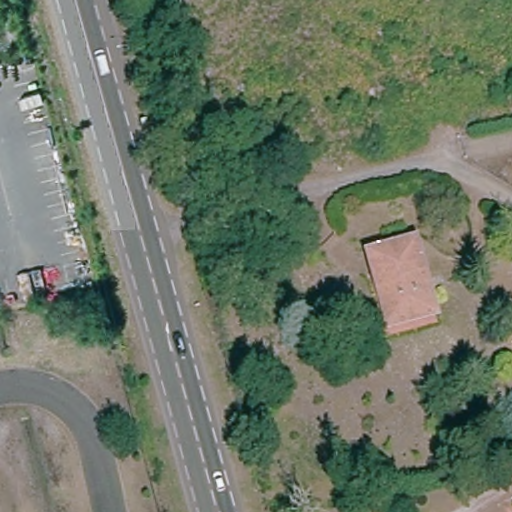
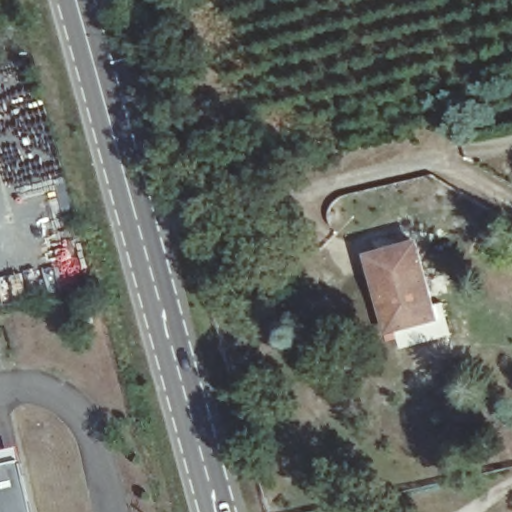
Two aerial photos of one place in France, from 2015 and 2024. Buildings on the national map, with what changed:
unchanged [(415,249),(435,320),(396,331),(387,294),(381,296),(371,261),(415,249)]
new [(34,512),(0,512),(0,469),(24,464),(34,512)]

